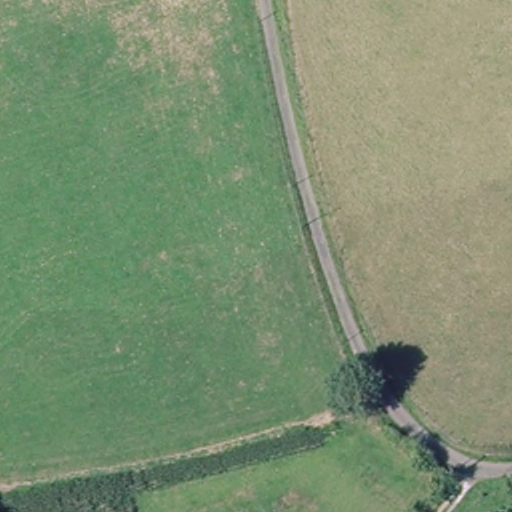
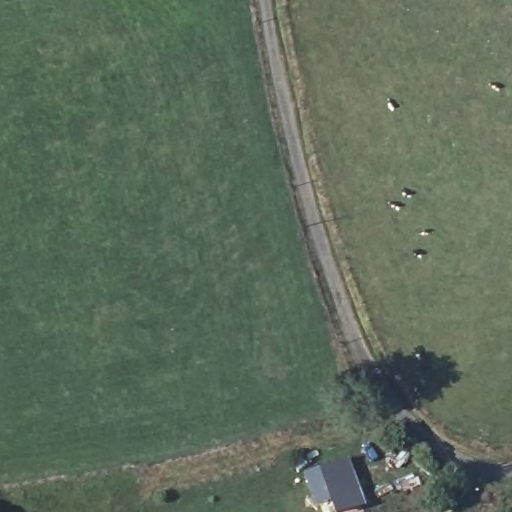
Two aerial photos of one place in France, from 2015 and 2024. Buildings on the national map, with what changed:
new [(350,512),(332,512),(328,500),(307,509),(296,478),(348,459),(363,508),(350,512)]

